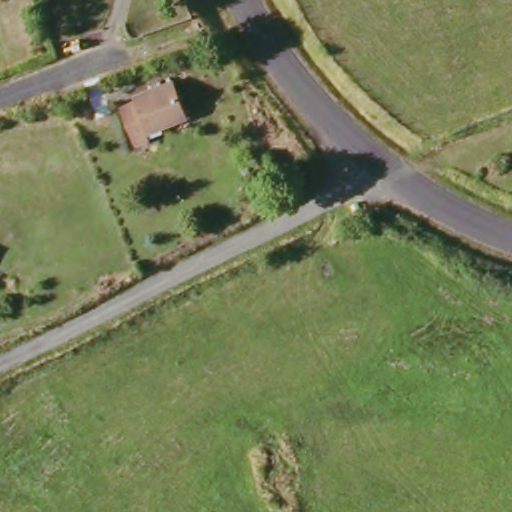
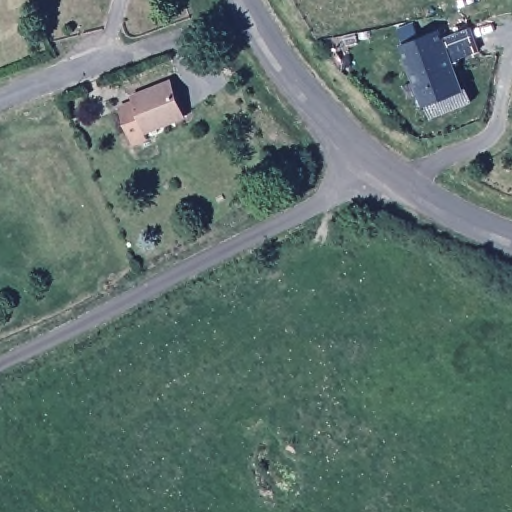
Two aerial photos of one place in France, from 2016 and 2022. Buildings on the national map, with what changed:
new [(466,90),(424,104),(399,45),(404,44),(399,29),(414,24),(419,36),(441,29),(445,37),(467,28),(478,52),(454,60),(466,90)]
unchanged [(132,104),(129,95),(171,80),(186,115),(171,123),(166,115),(141,125),(144,134),(146,140),(128,147),(117,110),(132,104)]

